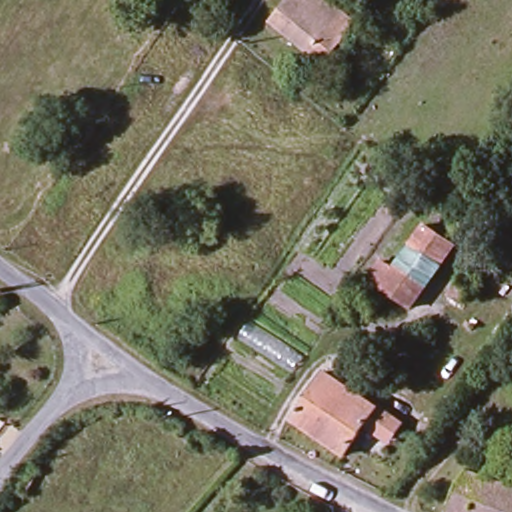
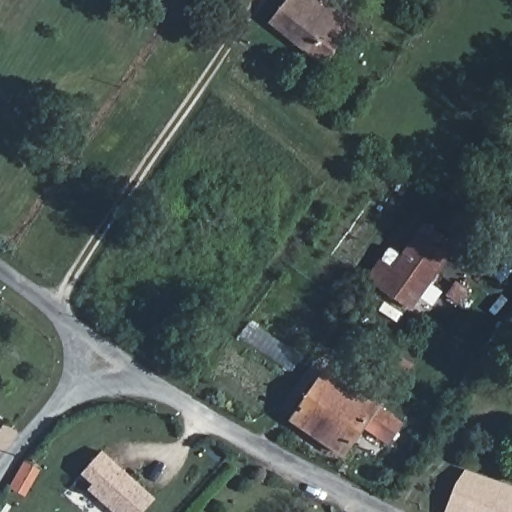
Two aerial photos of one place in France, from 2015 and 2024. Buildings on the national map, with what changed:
unchanged [(319,0),(349,21),(318,61),(266,21),(282,0),(319,0)]
unchanged [(376,0),(390,10),(382,21),(365,7),(371,0),(376,0)]
unchanged [(379,262),(393,270),(424,227),(455,251),(409,313),(368,282),(379,262)]
unchanged [(465,306),(452,299),(465,281),(473,286),(469,292),(473,294),(465,306)]
unchanged [(364,435),(344,462),(288,426),(325,376),(374,410),(392,422),(402,429),(388,451),(364,435)]
new [(145,512),(115,512),(79,479),(104,451),(156,499),(145,512)]
unchanged [(26,471),(35,476),(24,497),(11,490),(26,471)]
unchanged [(467,476),(512,493),(512,512),(445,512),(467,476)]

